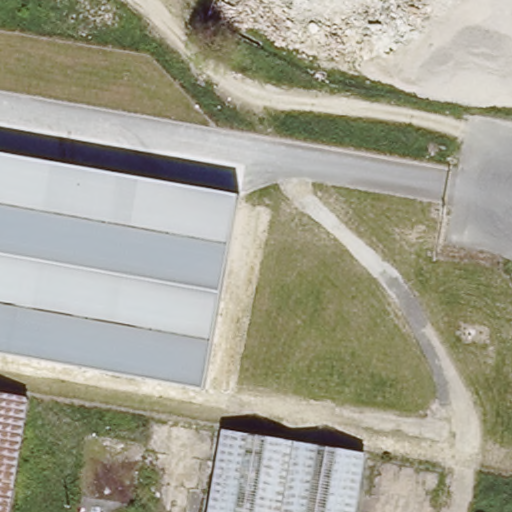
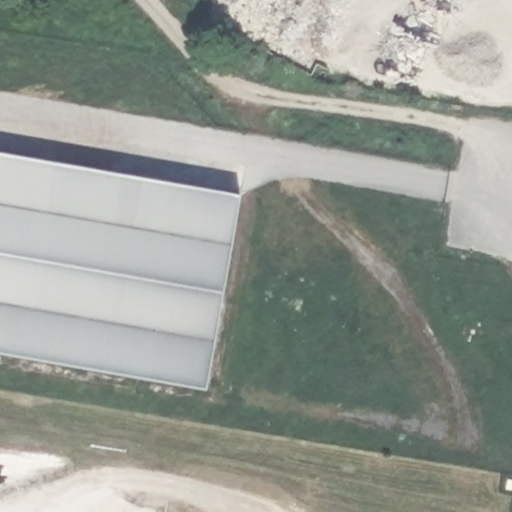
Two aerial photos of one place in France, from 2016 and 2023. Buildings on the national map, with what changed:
unchanged [(240,195),(204,389),(0,353),(0,153),(240,195)]
demolished [(30,400),(11,512),(0,512),(0,395),(30,400)]
demolished [(366,454),(357,512),(211,512),(225,432),(366,454)]

